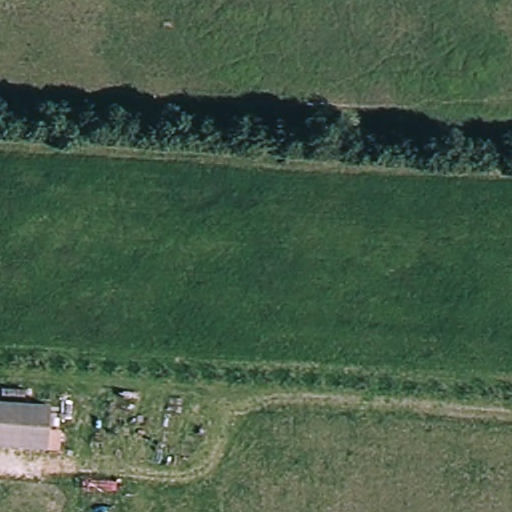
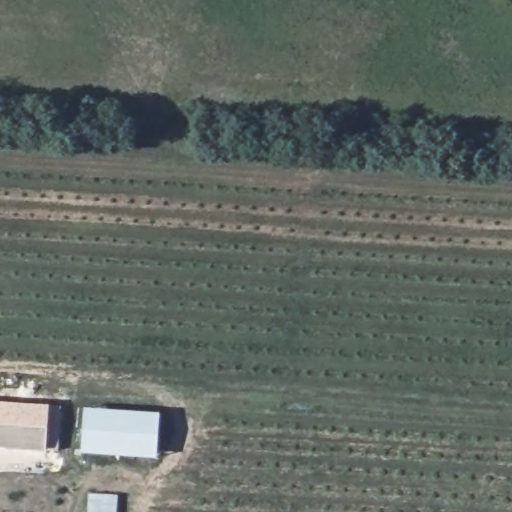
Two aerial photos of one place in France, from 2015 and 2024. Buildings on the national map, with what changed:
unchanged [(49,451),(0,449),(0,410),(52,412),(49,451)]
new [(159,417),(157,459),(85,453),(87,411),(159,417)]
new [(89,494),(118,496),(117,512),(88,512),(89,494)]

